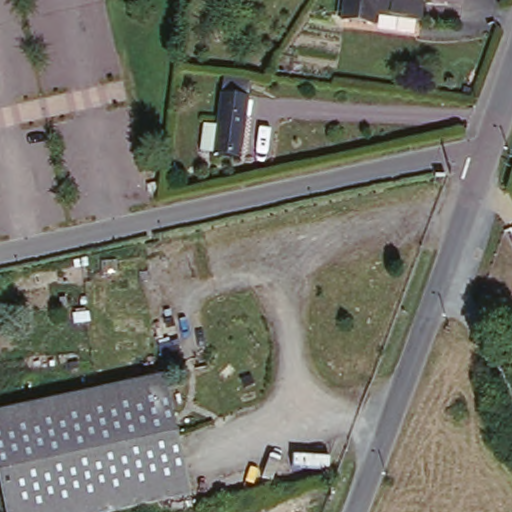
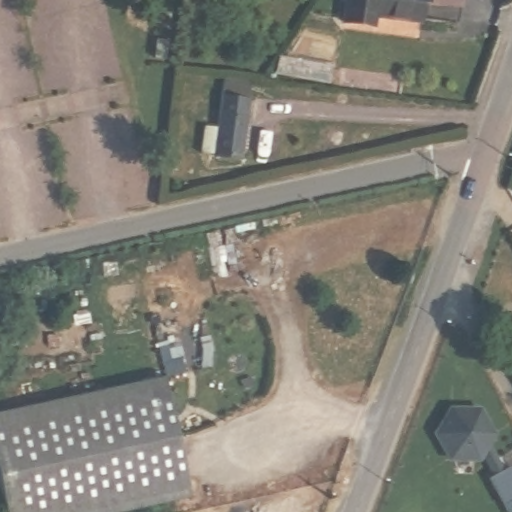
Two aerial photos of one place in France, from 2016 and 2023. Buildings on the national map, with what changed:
unchanged [(378,10),(379,4),(371,3),(369,20),(340,16),(342,0),(421,0),(419,15),(378,10)]
new [(438,0),(456,0),(456,2),(438,0)]
unchanged [(205,123),(218,124),(220,95),(224,77),(254,80),(252,96),(245,158),(202,155),(205,123)]
unchanged [(189,493),(105,512),(4,512),(0,495),(0,413),(163,374),(189,493)]
new [(484,449),(480,456),(452,456),(439,432),(453,408),(481,408),(494,433),(490,441),(505,468),(511,464),(512,466),(512,500),(504,504),(489,476),(496,472),(484,449)]

